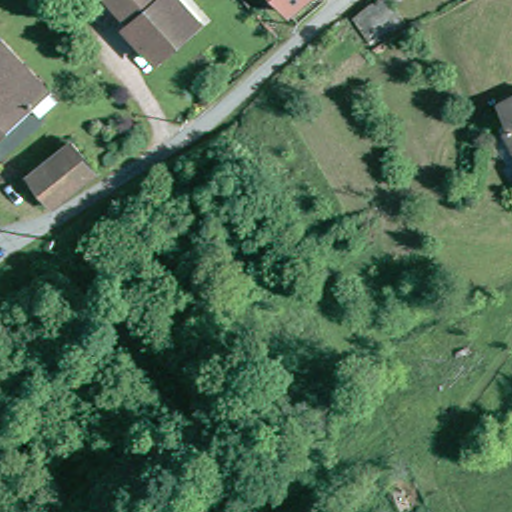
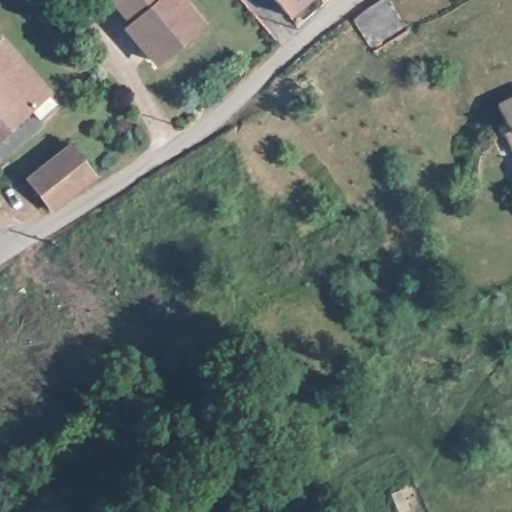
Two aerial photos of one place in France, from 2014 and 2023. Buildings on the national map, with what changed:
unchanged [(186,0),(202,18),(158,57),(128,25),(134,20),(117,0),(186,0)]
unchanged [(276,0),(311,0),(291,16),(276,0)]
unchanged [(386,0),(404,28),(372,48),(351,15),(375,0),(386,0)]
unchanged [(42,116),(34,107),(0,136),(0,43),(5,39),(53,90),(51,92),(59,102),(42,116)]
unchanged [(508,154),(497,130),(499,130),(502,128),(490,103),(512,95),(512,153),(512,152),(508,154)]
unchanged [(49,206),(25,177),(70,145),(92,176),(49,206)]

